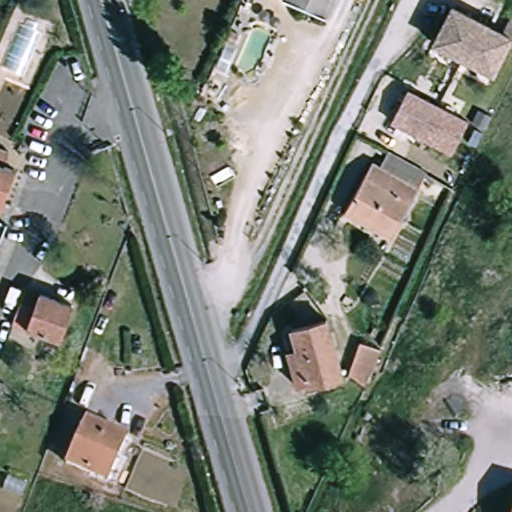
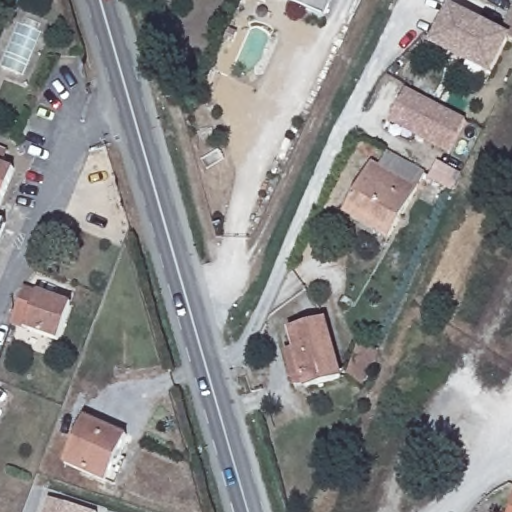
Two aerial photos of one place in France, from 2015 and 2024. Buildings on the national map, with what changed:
unchanged [(291,0),(327,0),(321,14),(291,0)]
unchanged [(497,76),(437,48),(455,11),(507,35),(512,24),(512,44),(497,76)]
unchanged [(393,117),(407,91),(467,121),(452,152),(417,135),(391,122),(393,117)]
unchanged [(3,164),(15,169),(0,206),(0,149),(8,152),(3,164)]
unchanged [(388,235),(344,210),(370,162),(378,166),(385,152),(423,172),(388,235)]
unchanged [(0,220),(6,222),(0,235),(0,220)]
unchanged [(57,343),(29,332),(34,318),(17,311),(27,287),(73,306),(57,343)]
unchanged [(353,310),(344,304),(348,297),(357,303),(353,310)]
unchanged [(283,349),(293,347),(287,326),(324,316),(339,373),(302,382),(301,379),(292,382),(283,349)]
unchanged [(348,370),(353,356),(359,338),(380,347),(380,349),(375,358),(364,383),(349,373),(347,372),(348,370)]
unchanged [(104,477),(65,460),(84,416),(124,433),(104,477)]
new [(50,498),(91,512),(45,512),(50,498)]

